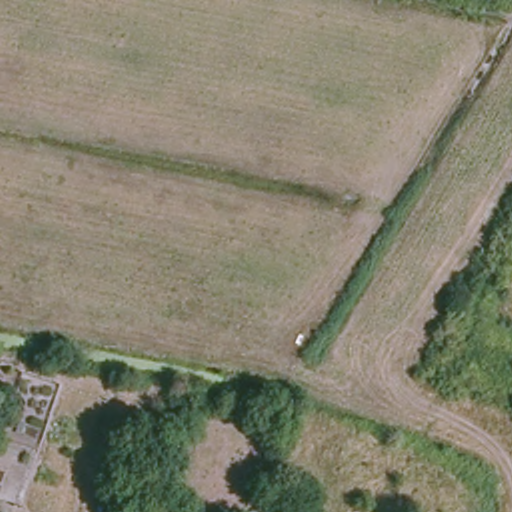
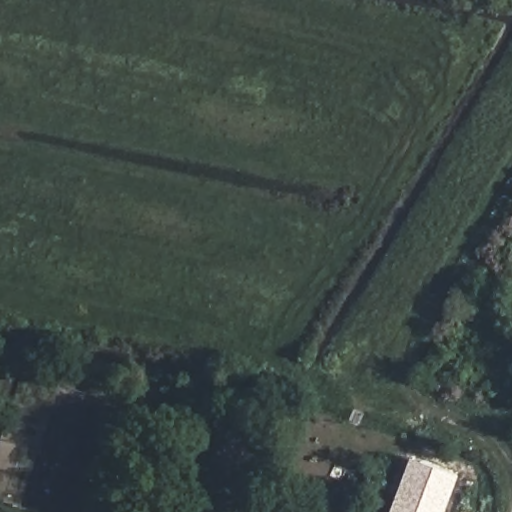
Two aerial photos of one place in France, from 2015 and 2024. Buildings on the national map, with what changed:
new [(411,457),(458,476),(445,512),(390,512),(411,457)]

